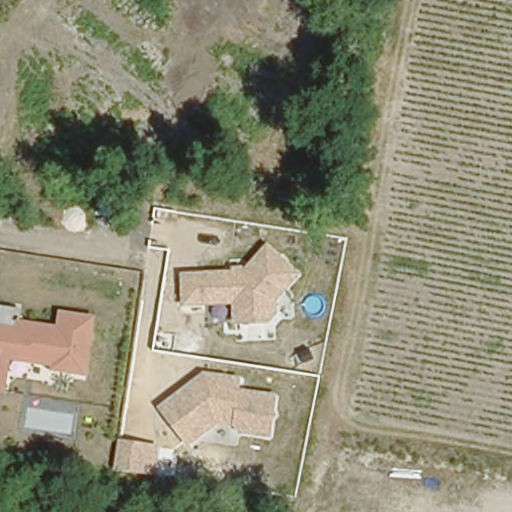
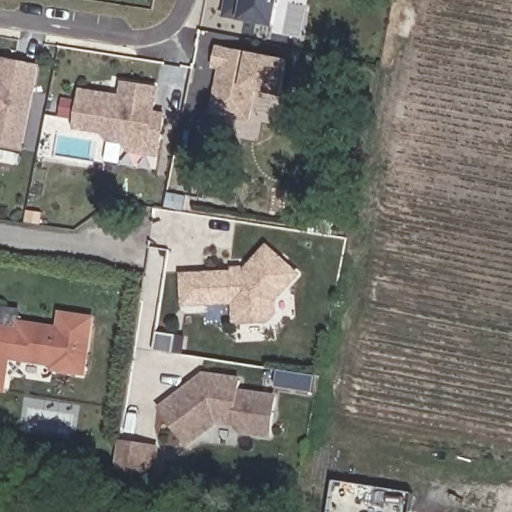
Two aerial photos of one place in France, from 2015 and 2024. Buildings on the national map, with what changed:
new [(275,27),(239,20),(223,16),(226,0),(280,0),(275,27)]
new [(290,60),(283,96),(257,91),(252,123),(211,114),(219,70),(214,69),(217,46),(248,52),(290,60)]
new [(0,146),(0,59),(1,57),(41,64),(25,151),(0,146)]
new [(121,144),(106,142),(101,132),(73,129),(81,87),(121,93),(122,81),(159,86),(156,111),(166,113),(159,157),(128,153),(121,144)]
unchanged [(280,300),(279,315),(268,325),(252,327),(236,317),(235,306),(183,307),(182,272),(244,270),(268,244),(302,275),(280,300)]
unchanged [(14,362),(9,392),(0,390),(0,310),(1,305),(25,308),(22,319),(59,324),(61,307),(98,313),(88,375),(14,362)]
unchanged [(272,435),(222,422),(194,447),(160,406),(205,370),(244,375),(243,387),(280,395),(272,435)]
unchanged [(154,477),(115,470),(121,439),(158,445),(154,477)]

